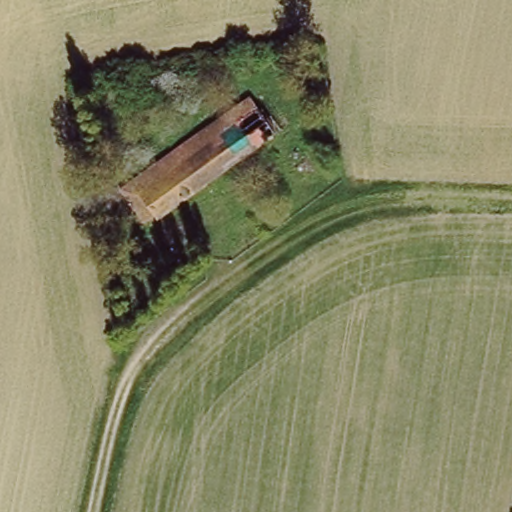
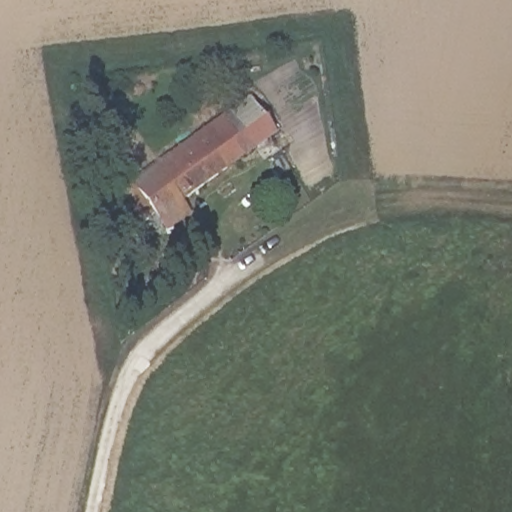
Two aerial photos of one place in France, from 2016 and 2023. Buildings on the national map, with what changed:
unchanged [(250,99),(274,136),(157,218),(154,215),(144,222),(122,190),(250,99)]

